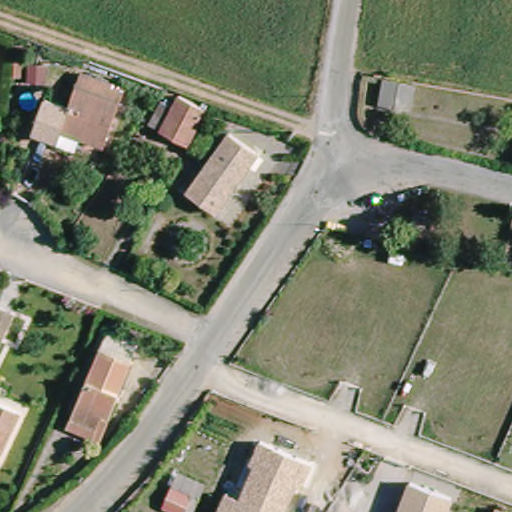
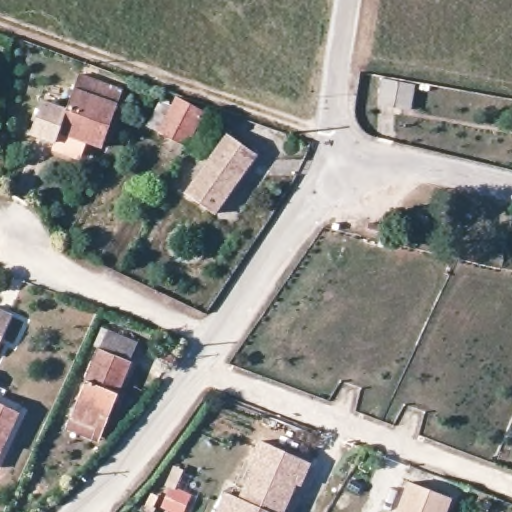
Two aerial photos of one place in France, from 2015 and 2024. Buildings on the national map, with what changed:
unchanged [(87,150),(60,140),(68,117),(80,83),(85,69),(128,84),(123,98),(103,155),(87,150)]
unchanged [(378,80),(418,88),(415,115),(372,107),(378,80)]
unchanged [(43,102),(28,101),(28,84),(43,85),(43,102)]
unchanged [(181,145),(156,134),(173,101),(199,110),(181,145)]
unchanged [(87,150),(81,164),(55,154),(56,150),(33,141),(45,109),(68,117),(60,140),(87,150)]
unchanged [(264,160),(223,222),(193,200),(236,139),(264,160)]
unchanged [(414,220),(417,205),(434,209),(431,223),(414,220)]
unchanged [(0,336),(0,310),(9,315),(0,336)]
unchanged [(112,432),(103,430),(99,445),(71,435),(101,349),(136,361),(112,432)]
unchanged [(0,401),(24,406),(4,453),(0,451),(0,401)]
unchanged [(226,492),(240,499),(253,465),(249,463),(259,440),(314,463),(304,487),(298,483),(285,512),(217,512),(226,492)]
unchanged [(0,462),(0,451),(4,453),(0,462)]
unchanged [(163,506),(178,471),(206,484),(201,499),(193,495),(184,512),(175,512),(163,506)]
unchanged [(412,482),(454,497),(449,512),(401,512),(412,482)]

